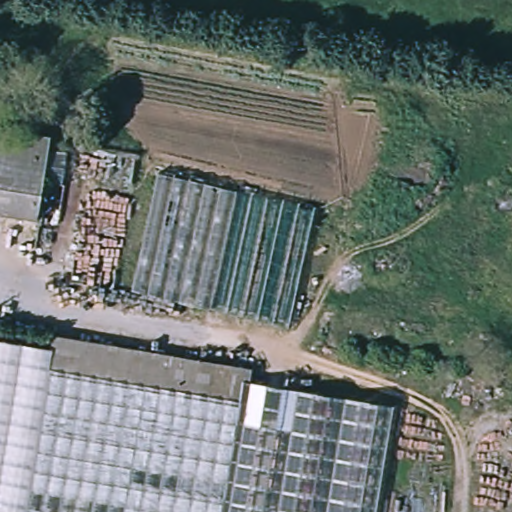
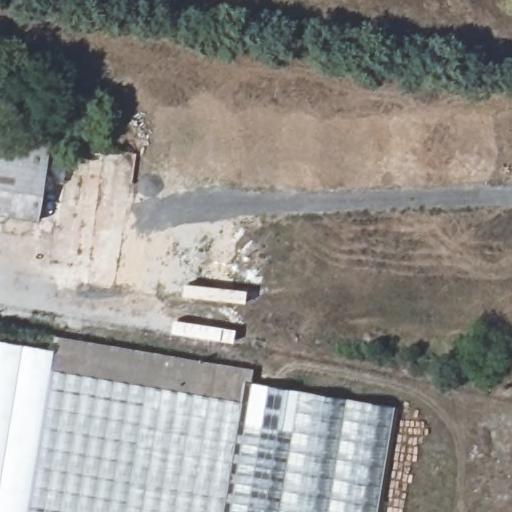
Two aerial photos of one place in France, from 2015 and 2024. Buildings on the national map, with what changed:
unchanged [(57,128),(43,212),(0,205),(0,119),(57,128)]
demolished [(320,196),(294,318),(135,283),(162,160),(320,196)]
unchanged [(398,406),(379,512),(0,512),(0,338),(45,345),(47,332),(237,363),(235,377),(398,406)]

